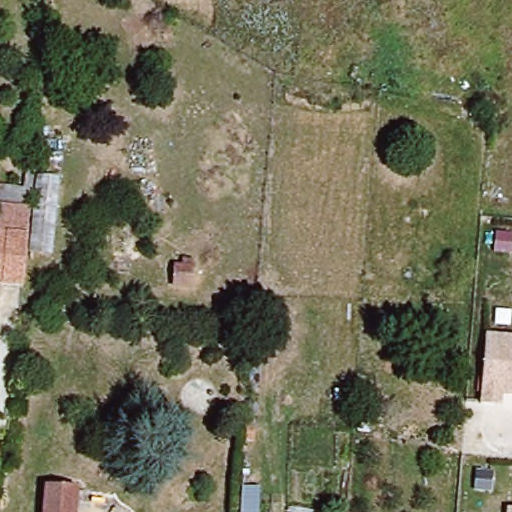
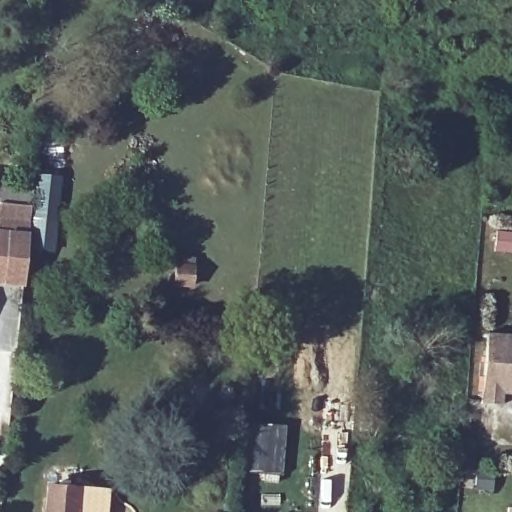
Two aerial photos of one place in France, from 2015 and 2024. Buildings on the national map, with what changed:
unchanged [(31,207),(35,171),(61,174),(55,252),(28,248),(25,287),(0,283),(0,203),(31,207)]
unchanged [(512,396),(504,396),(504,404),(481,403),(487,333),(512,334),(512,396)]
new [(248,423),(286,424),(284,474),(246,473),(248,423)]
unchanged [(260,512),(240,512),(242,482),(261,484),(260,512)]
unchanged [(81,487),(79,512),(45,512),(48,489),(81,487)]
unchanged [(512,512),(508,512),(509,510),(512,510),(512,512)]

